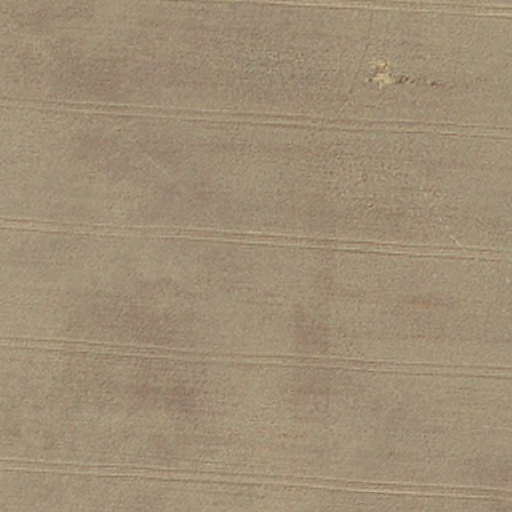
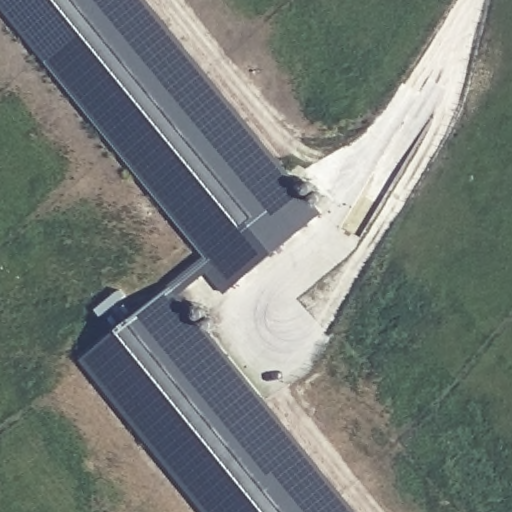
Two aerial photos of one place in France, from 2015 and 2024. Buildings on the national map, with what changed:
new [(228,289),(0,9),(0,0),(145,0),(319,215),(228,289)]
new [(360,512),(202,512),(78,358),(175,282),(360,512)]

